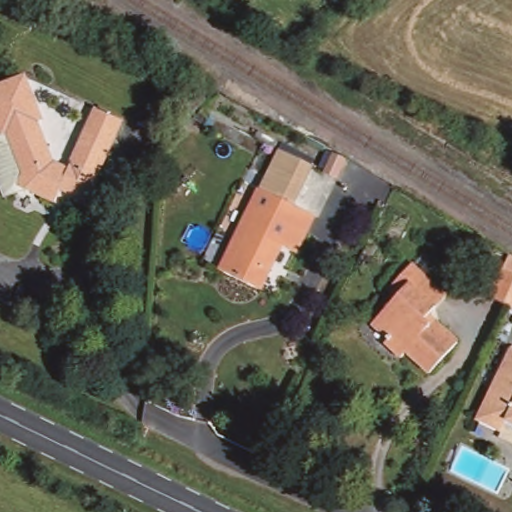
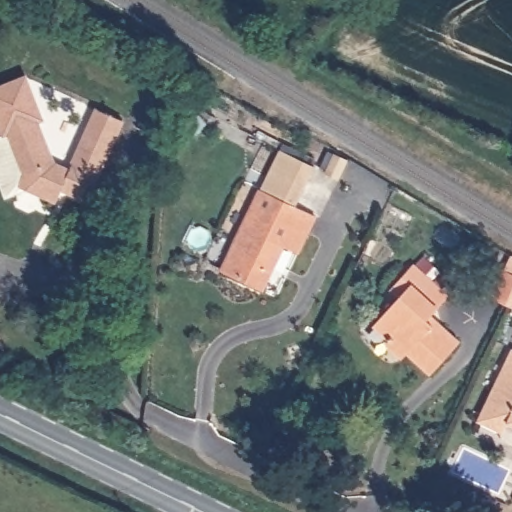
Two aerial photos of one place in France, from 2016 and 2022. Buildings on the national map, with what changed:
unchanged [(0,104),(0,88),(32,75),(49,119),(45,121),(61,164),(76,172),(105,112),(131,126),(93,203),(68,192),(64,203),(31,188),(29,191),(13,192),(0,160),(0,135),(10,131),(0,104)]
unchanged [(215,82),(227,91),(206,110),(197,100),(215,82)]
unchanged [(253,187),(273,148),(306,163),(288,203),(309,213),(290,250),(274,242),(263,265),(265,267),(255,288),(212,268),(253,187)]
unchanged [(504,305),(491,298),(511,257),(512,258),(512,309),(504,305)]
unchanged [(402,301),(391,292),(413,268),(446,298),(425,321),(437,332),(440,329),(458,346),(429,377),(408,357),(403,362),(388,347),(392,343),(376,328),(402,301)]
unchanged [(512,358),(512,422),(511,422),(505,433),(482,421),(512,358)]

